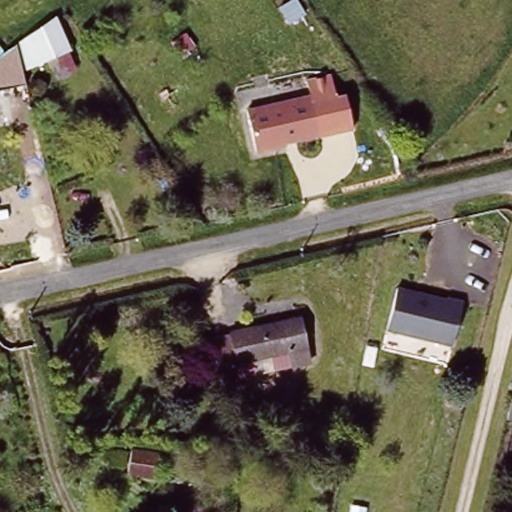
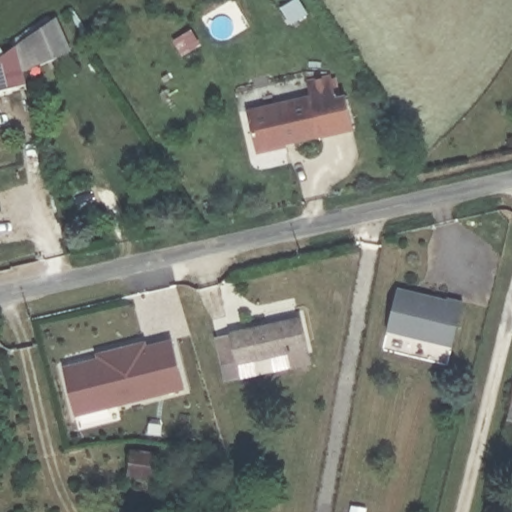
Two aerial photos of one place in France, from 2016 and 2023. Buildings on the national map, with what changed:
unchanged [(57,20),(65,58),(51,61),(27,67),(22,45),(57,20)]
unchanged [(22,45),(27,67),(32,86),(0,93),(0,62),(15,49),(22,45)]
unchanged [(332,74),(337,95),(345,94),(352,129),(322,135),(314,97),(308,79),(332,74)]
unchanged [(282,146),(260,151),(250,111),(314,97),(322,135),(287,143),(288,145),(282,146)]
unchanged [(463,300),(452,347),(388,333),(396,287),(463,300)]
unchanged [(302,318),(312,363),(293,367),(290,351),(240,361),(243,378),(229,381),(220,335),(302,318)]
new [(144,343),(145,347),(171,341),(183,391),(72,416),(61,373),(60,367),(95,359),(97,364),(95,358),(95,354),(144,343)]
unchanged [(510,418),(512,407),(512,418),(510,418)]
demolished [(512,433),(512,470),(510,476),(493,472),(503,431),(512,433)]
unchanged [(161,447),(157,469),(129,464),(133,441),(161,447)]

